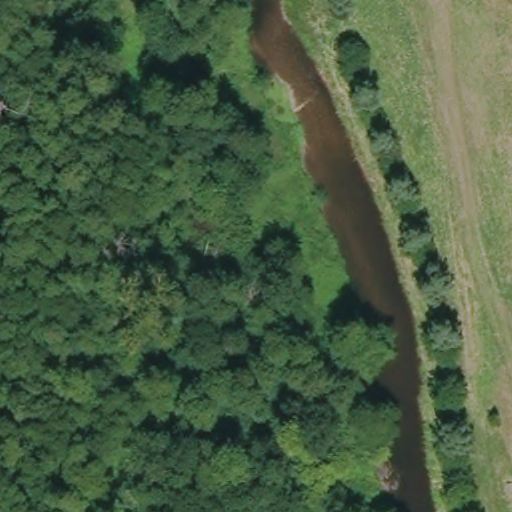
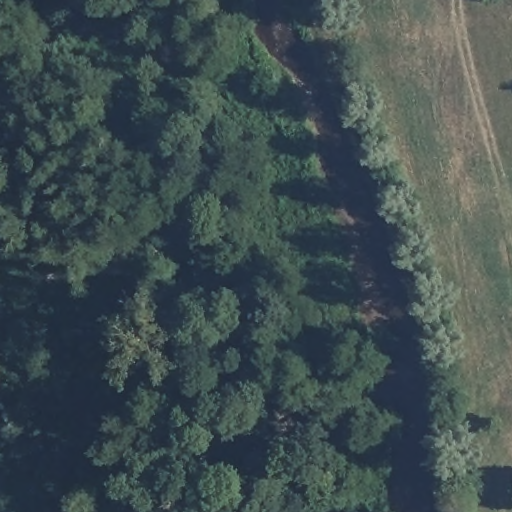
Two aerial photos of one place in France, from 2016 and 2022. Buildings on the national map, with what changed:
[]

